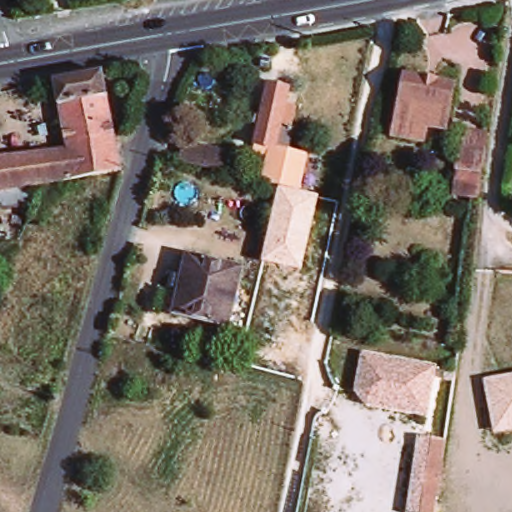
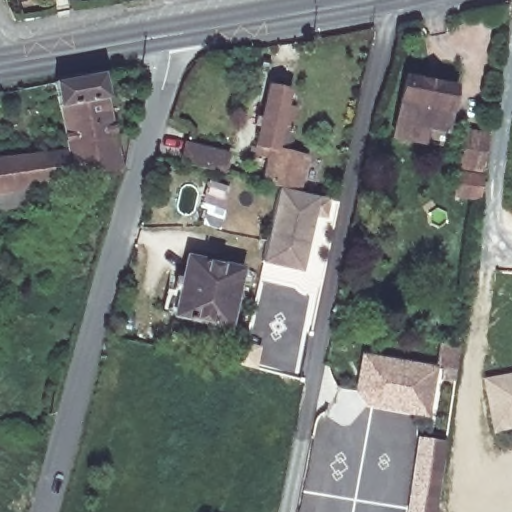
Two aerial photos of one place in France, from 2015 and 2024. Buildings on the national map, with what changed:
unchanged [(78,148),(66,79),(114,71),(131,169),(0,191),(0,158),(78,148)]
unchanged [(465,80),(456,129),(435,125),(433,140),(405,135),(416,72),(465,80)]
unchanged [(291,184),(275,180),(282,146),(268,143),(281,85),(302,90),(300,102),(309,104),(291,184)]
unchanged [(493,165),(470,161),(477,122),(498,126),(493,165)]
unchanged [(192,146),(230,155),(224,176),(185,167),(192,146)]
unchanged [(493,171),(489,197),(470,193),(475,168),(493,171)]
unchanged [(255,267),(240,325),(186,311),(202,252),(255,267)]
new [(261,278),(292,285),(310,295),(305,337),(296,375),(255,366),(260,340),(249,335),(261,278)]
unchanged [(429,416),(367,401),(359,387),(368,350),(378,352),(370,384),(375,392),(431,406),(429,416)]
unchanged [(441,367),(431,406),(375,392),(370,384),(378,352),(441,367)]
unchanged [(512,380),(512,433),(491,432),(491,422),(492,380),(512,380)]
unchanged [(438,502),(438,505),(410,501),(416,461),(444,465),(438,502)]

